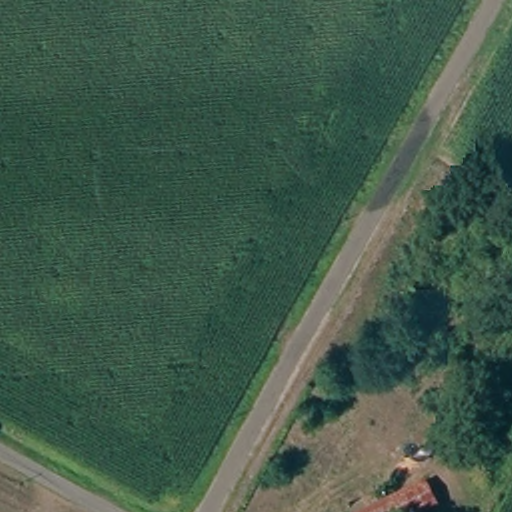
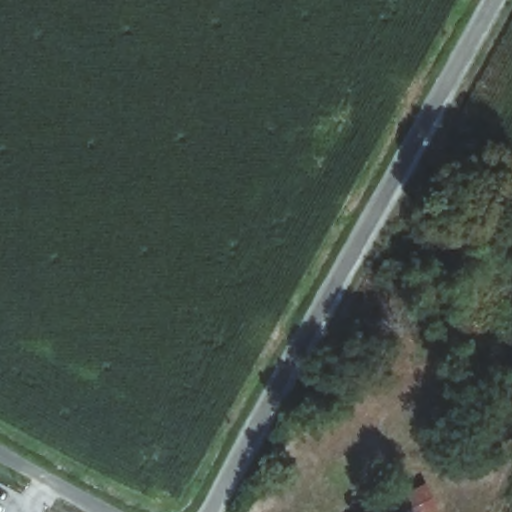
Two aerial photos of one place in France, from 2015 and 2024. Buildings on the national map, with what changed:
unchanged [(431,512),(369,512),(425,484),(437,509),(431,512)]

